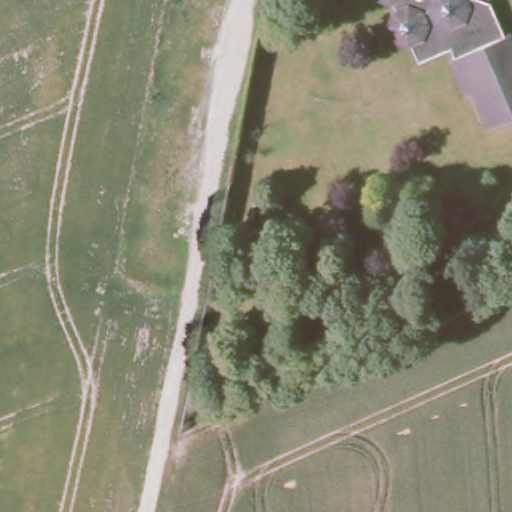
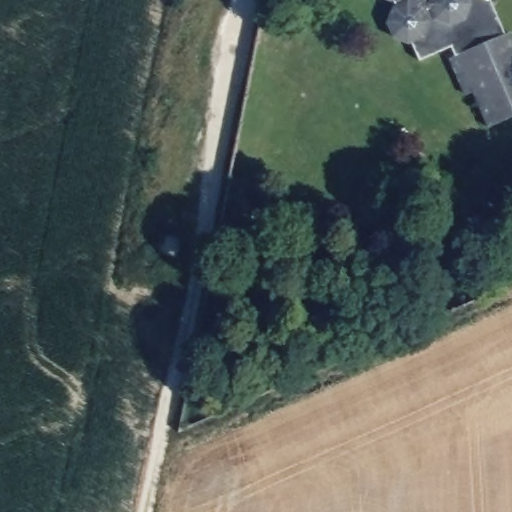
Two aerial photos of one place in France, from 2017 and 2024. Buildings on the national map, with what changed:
unchanged [(471,94),(455,57),(460,55),(456,46),(423,60),(416,41),(413,43),(399,37),(392,23),(398,9),(401,7),(398,0),(496,0),(510,34),(512,32),(512,118),(494,126),(479,91),(471,94)]

